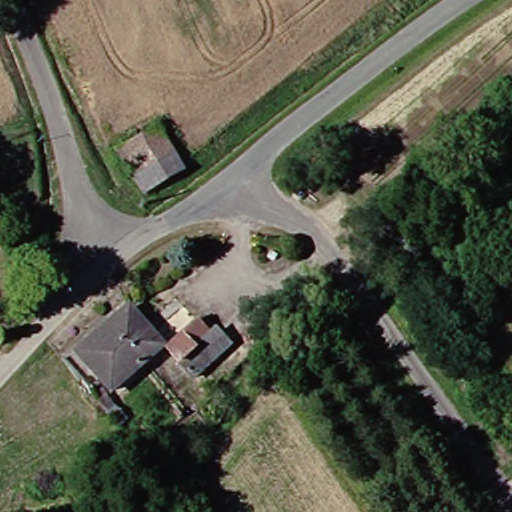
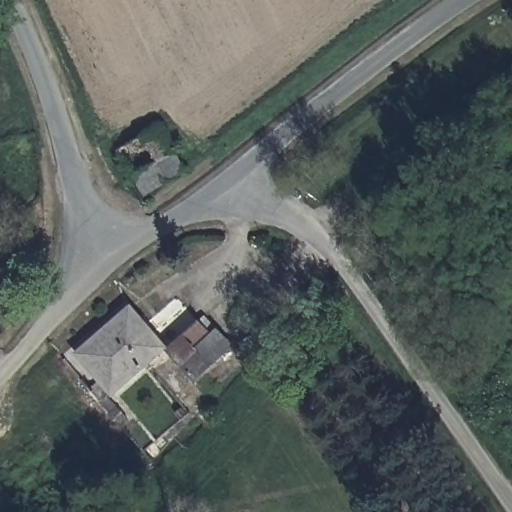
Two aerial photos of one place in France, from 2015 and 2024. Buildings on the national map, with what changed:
unchanged [(154,192),(142,176),(125,149),(165,122),(184,149),(180,151),(191,166),(154,192)]
unchanged [(82,345),(133,300),(146,317),(165,342),(160,346),(111,383),(82,345)]
unchanged [(170,344),(205,317),(229,348),(195,375),(170,344)]
unchanged [(89,380),(96,373),(125,410),(119,417),(89,380)]

